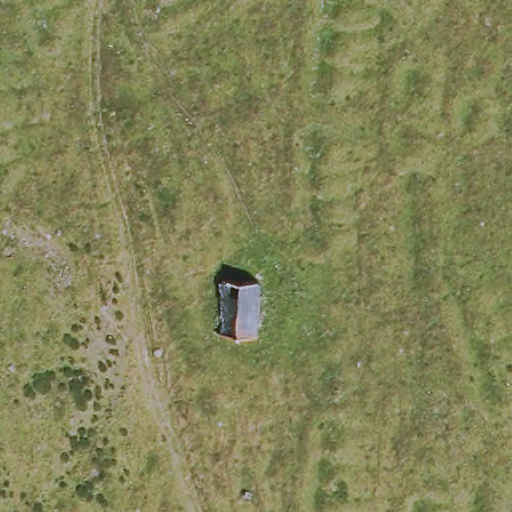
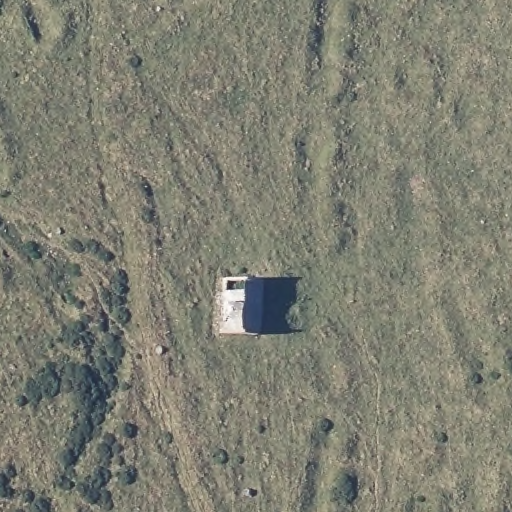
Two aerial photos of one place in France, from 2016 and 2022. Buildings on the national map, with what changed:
unchanged [(264,340),(224,340),(225,283),(259,284),(264,340)]

